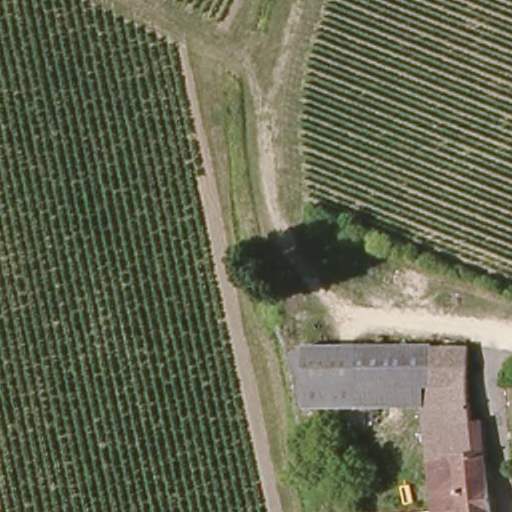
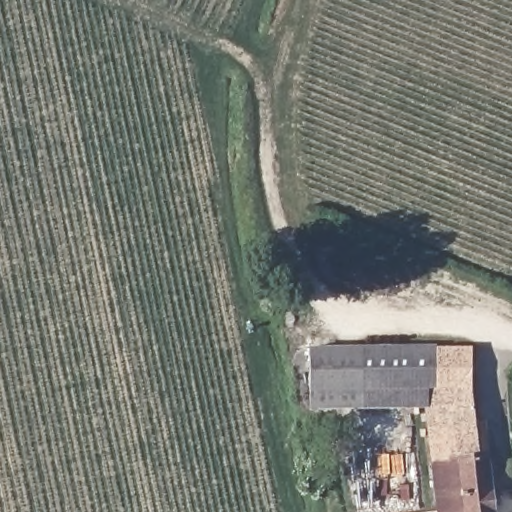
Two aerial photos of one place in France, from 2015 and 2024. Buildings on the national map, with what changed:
unchanged [(307,412),(302,347),(423,338),(475,337),(479,423),(491,425),(497,512),(434,512),(424,404),(307,412)]

